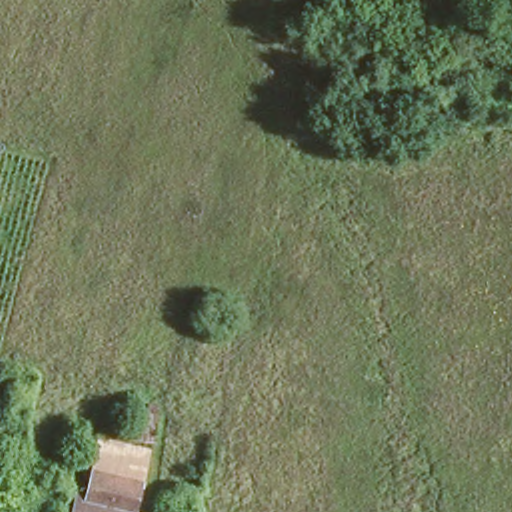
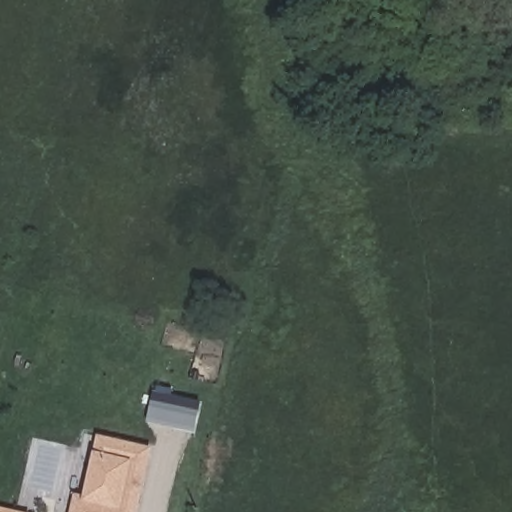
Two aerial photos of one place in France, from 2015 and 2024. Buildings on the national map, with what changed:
new [(147,422),(152,395),(163,393),(200,401),(194,432),(147,422)]
unchanged [(147,508),(146,512),(65,512),(71,487),(82,489),(97,438),(99,430),(118,435),(128,395),(151,399),(142,440),(148,441),(147,448),(132,505),(147,508)]

